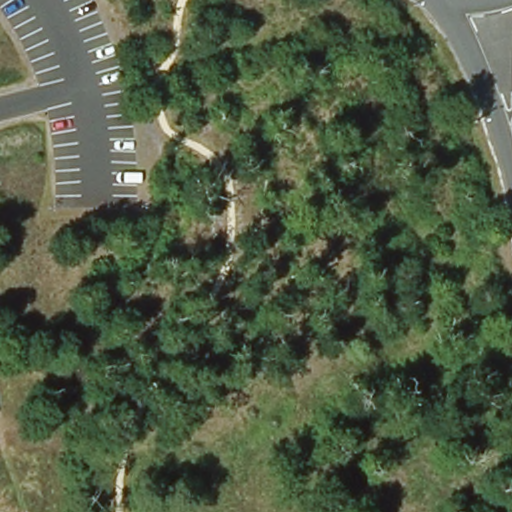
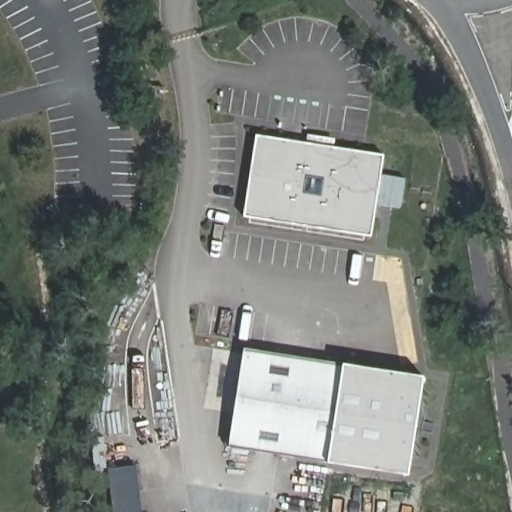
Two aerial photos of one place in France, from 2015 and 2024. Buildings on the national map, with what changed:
new [(337,148),(384,155),(377,204),(383,205),(381,218),(375,217),(372,237),(365,236),(364,241),(250,223),(251,217),(245,216),(258,135),(307,143),(308,135),(336,139),(337,148)]
new [(344,365),(424,377),(408,475),(328,462),(229,447),(245,349),(344,365)]
new [(108,470),(137,466),(142,512),(113,512),(108,470)]

